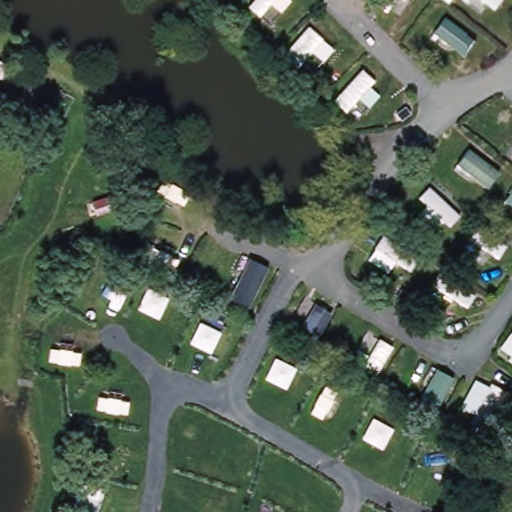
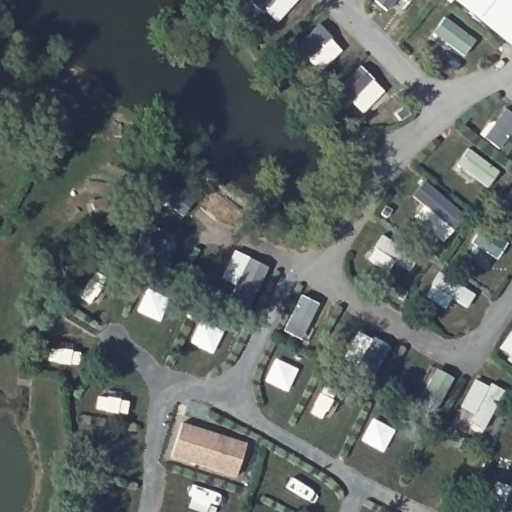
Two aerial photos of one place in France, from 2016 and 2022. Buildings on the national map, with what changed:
new [(450,2),(448,0),(451,0),(450,2)]
demolished [(489,0),(512,0),(512,19),(489,0)]
new [(246,442),(237,478),(171,457),(182,422),(246,442)]

